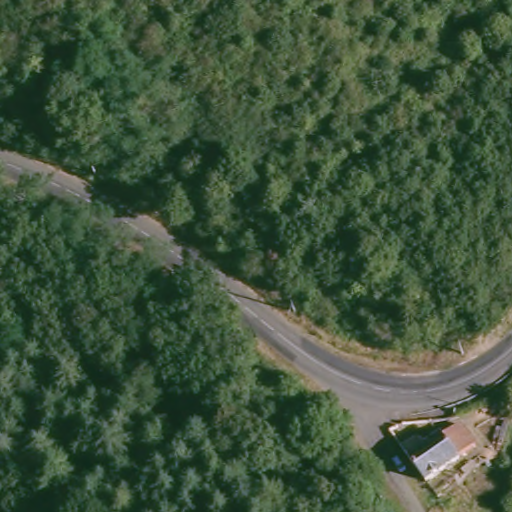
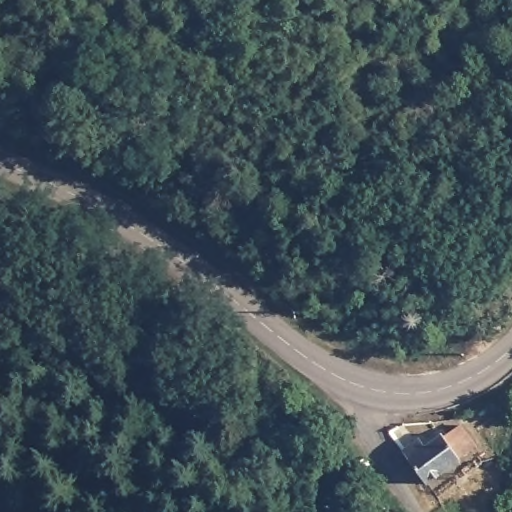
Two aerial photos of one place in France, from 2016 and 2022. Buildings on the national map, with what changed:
unchanged [(398,450),(414,441),(419,448),(438,437),(440,439),(461,427),(474,450),(418,481),(398,450)]

